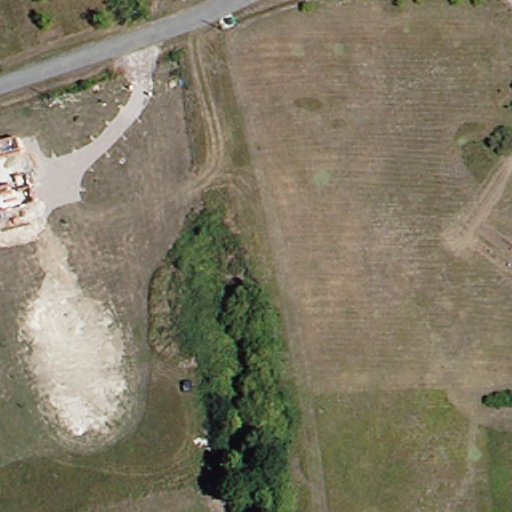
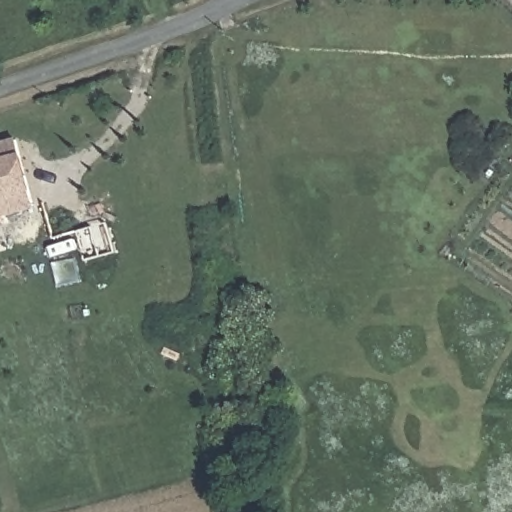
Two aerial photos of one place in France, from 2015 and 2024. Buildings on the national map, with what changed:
new [(16,139),(22,157),(31,193),(35,209),(0,218),(0,143),(16,139)]

